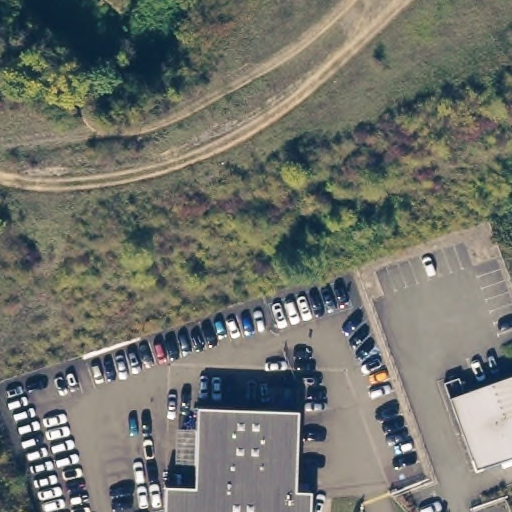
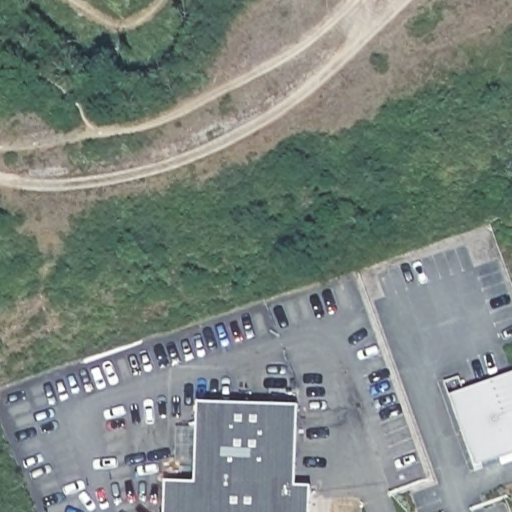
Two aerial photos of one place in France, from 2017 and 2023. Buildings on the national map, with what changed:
unchanged [(512,375),(512,457),(475,470),(449,397),(512,375)]
unchanged [(193,486),(197,419),(197,406),(298,410),(296,490),(311,490),(310,512),(164,512),(165,485),(193,486)]

